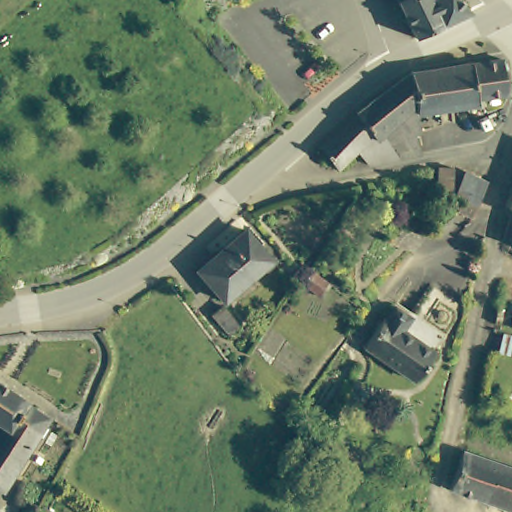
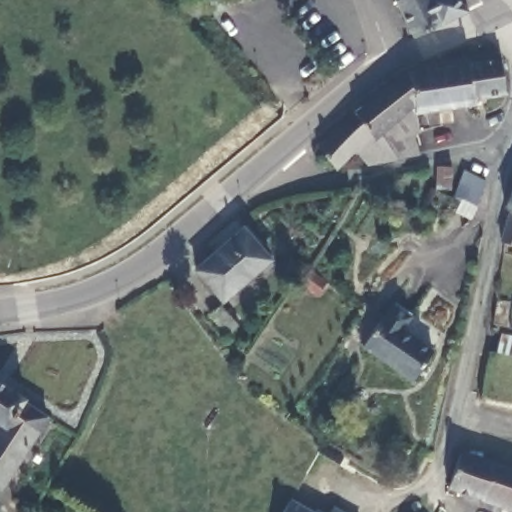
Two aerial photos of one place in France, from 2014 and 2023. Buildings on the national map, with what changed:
unchanged [(408,17),(445,22),(415,37),(398,0),(410,0),(408,17)]
unchanged [(468,11),(449,20),(452,4),(415,0),(458,0),(468,11)]
unchanged [(470,57),(471,59),(499,54),(506,91),(476,94),(476,100),(455,101),(451,60),(470,57)]
unchanged [(423,104),(417,66),(451,60),(455,101),(423,104)]
unchanged [(338,162),(321,142),(357,108),(355,107),(411,66),(416,64),(417,66),(423,104),(415,107),(420,126),(412,127),(417,150),(401,152),(370,159),(359,143),(338,162)]
unchanged [(457,164),(447,187),(445,189),(433,183),(437,175),(446,159),(457,164)]
unchanged [(482,184),(472,205),(450,195),(461,174),(482,184)]
unchanged [(511,207),(507,204),(512,190),(512,240),(502,237),(511,207)]
unchanged [(224,295),(199,266),(246,225),(271,254),(224,295)]
unchanged [(320,293),(301,278),(310,263),(330,281),(320,293)]
unchanged [(222,302),(238,322),(227,331),(211,312),(222,302)]
unchanged [(395,302),(411,314),(403,326),(432,347),(412,375),(365,343),(395,302)]
unchanged [(512,334),(512,350),(497,347),(501,332),(512,334)]
unchanged [(29,401),(28,403),(51,420),(5,491),(0,488),(0,430),(2,427),(0,426),(0,383),(29,401)]
unchanged [(448,487),(463,446),(490,457),(512,466),(512,508),(496,504),(448,487)]
new [(313,512),(284,512),(292,500),(313,512)]
unchanged [(54,512),(33,512),(37,503),(54,512)]
new [(340,512),(332,512),(334,508),(340,512)]

